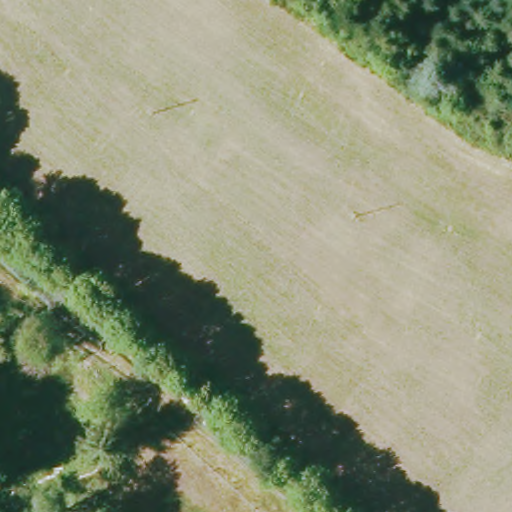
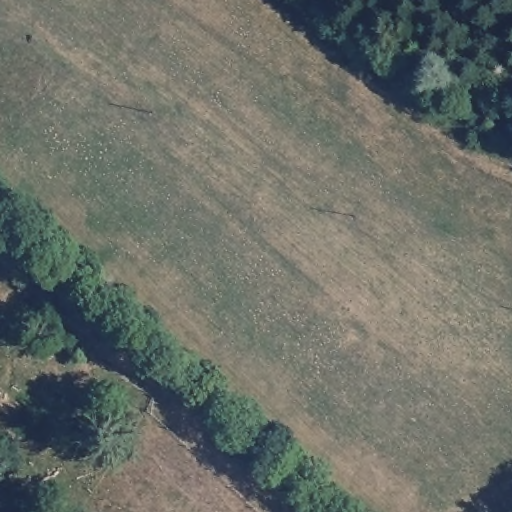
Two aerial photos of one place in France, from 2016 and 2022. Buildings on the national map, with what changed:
[]

